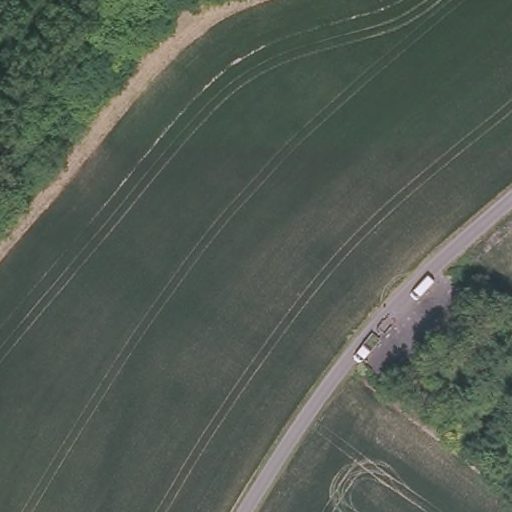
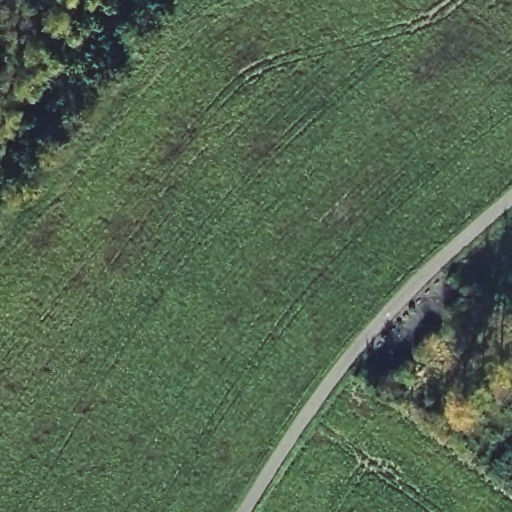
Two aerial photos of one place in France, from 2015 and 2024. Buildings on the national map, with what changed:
[]

